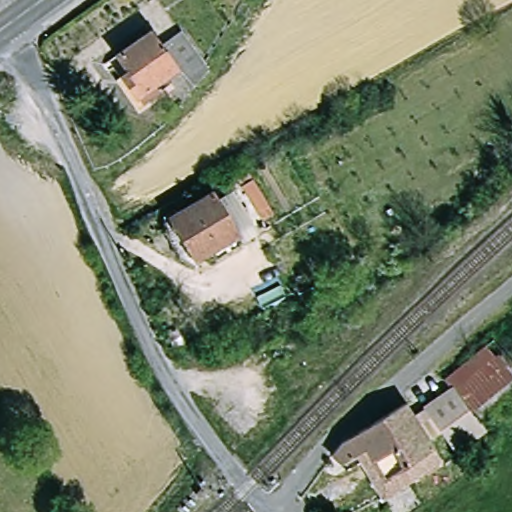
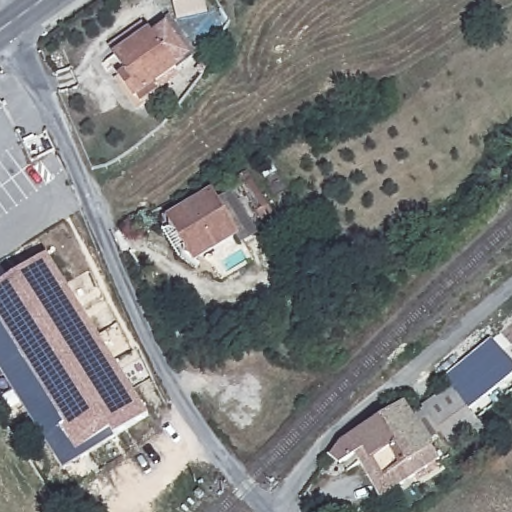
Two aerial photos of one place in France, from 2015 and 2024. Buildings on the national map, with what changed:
unchanged [(113,78),(128,72),(115,52),(150,30),(160,41),(182,30),(209,68),(194,90),(176,72),(158,80),(161,91),(133,109),(113,78)]
demolished [(296,147),(310,182),(279,192),(267,160),(296,147)]
unchanged [(237,236),(200,260),(189,252),(185,237),(176,231),(172,218),(210,195),(237,236)]
new [(150,416),(65,469),(0,367),(0,285),(48,255),(150,416)]
unchanged [(512,374),(512,379),(472,414),(446,377),(487,342),(512,374)]
unchanged [(467,418),(452,429),(437,407),(452,395),(467,418)]
unchanged [(402,401),(439,454),(389,488),(362,448),(355,457),(345,466),(330,452),(341,440),(402,401)]
unchanged [(362,448),(389,488),(439,454),(445,465),(385,506),(355,457),(362,448)]
unchanged [(392,506),(401,500),(405,507),(398,512),(396,512),(392,506)]

